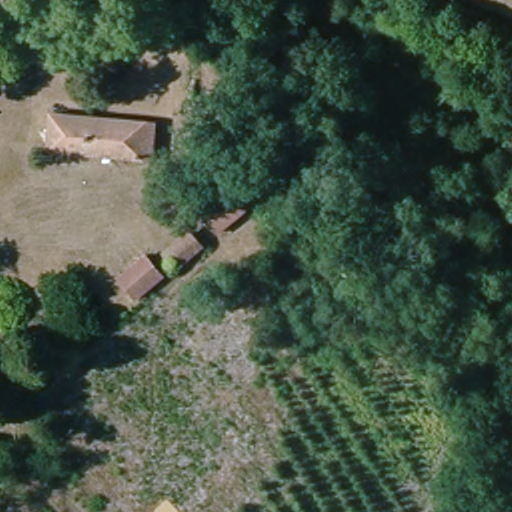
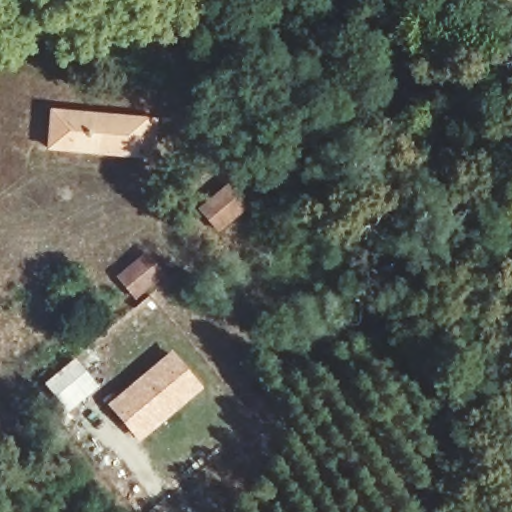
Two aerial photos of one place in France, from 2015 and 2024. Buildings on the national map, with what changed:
unchanged [(153,124),(149,159),(49,150),(52,115),(153,124)]
unchanged [(216,226),(200,205),(227,182),(243,203),(216,226)]
unchanged [(170,276),(165,268),(169,265),(164,258),(190,237),(200,250),(170,276)]
unchanged [(148,261),(163,282),(149,293),(134,305),(121,287),(119,284),(129,276),(143,265),(148,261)]
new [(173,352),(200,385),(184,398),(176,388),(132,425),(112,402),(173,352)]

